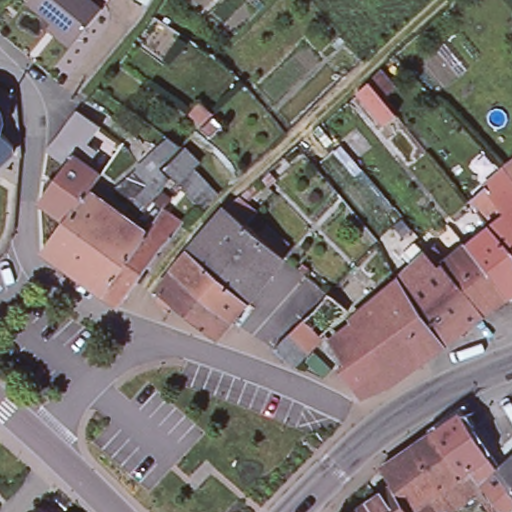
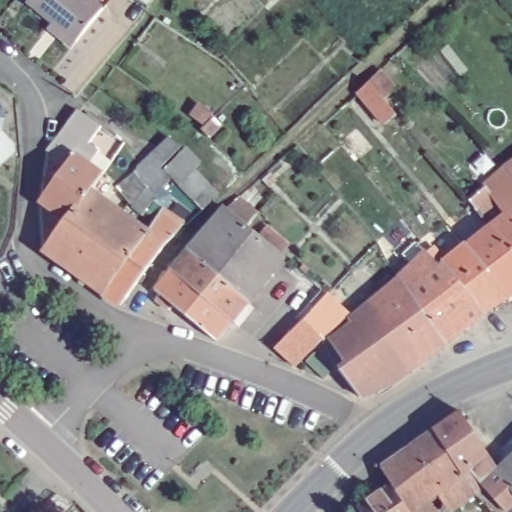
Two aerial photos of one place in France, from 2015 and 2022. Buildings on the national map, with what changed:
unchanged [(27,0),(28,0),(93,0),(102,7),(75,40),(70,46),(49,28),(54,21),(27,0)]
unchanged [(379,69),(394,87),(382,98),(395,114),(384,122),(358,90),(369,80),(379,69)]
unchanged [(215,114),(214,116),(222,127),(210,136),(187,115),(197,102),(215,114)]
unchanged [(3,119),(2,125),(1,130),(0,132),(0,108),(2,111),(3,119)]
unchanged [(100,125),(89,142),(99,150),(87,165),(72,154),(66,164),(47,150),(80,110),(100,125)]
unchanged [(14,150),(0,161),(0,135),(13,144),(14,150)]
unchanged [(42,247),(64,218),(66,220),(88,190),(89,190),(145,230),(154,218),(143,210),(139,215),(127,205),(130,203),(114,184),(140,165),(147,157),(168,135),(182,145),(160,166),(171,177),(152,200),(182,221),(162,242),(118,304),(100,290),(42,247)]
unchanged [(72,154),(87,165),(101,175),(89,190),(88,190),(66,220),(64,218),(40,200),(66,164),(72,154)]
unchanged [(480,215),(470,200),(489,182),(485,179),(490,175),(494,178),(501,171),(502,170),(512,161),(512,258),(488,228),(494,224),(502,216),(493,205),(480,215)]
unchanged [(192,169),(217,194),(201,207),(177,183),(192,169)]
unchanged [(236,197),(255,214),(247,225),(284,257),(244,305),(189,250),(226,207),(236,197)]
unchanged [(488,228),(512,258),(512,296),(507,299),(466,245),(488,228)]
unchanged [(401,253),(415,242),(425,253),(432,246),(445,262),(466,245),(507,299),(485,315),(471,323),(445,344),(402,282),(397,277),(412,265),(401,253)]
unchanged [(189,250),(244,305),(227,323),(172,271),(189,250)]
unchanged [(155,291),(172,271),(227,323),(215,340),(212,342),(159,294),(155,291)]
unchanged [(397,277),(402,282),(445,344),(410,369),(365,306),(397,277)]
unchanged [(327,294),(329,292),(347,308),(325,331),(292,365),(275,348),(306,315),(327,294)]
unchanged [(352,326),(349,320),(355,315),(365,306),(410,369),(392,383),(359,396),(355,391),(338,369),(345,363),(330,342),(352,326)]
unchanged [(500,503),(491,510),(470,486),(445,503),(406,443),(440,421),(458,409),(495,465),(512,449),(512,493),(507,497),(510,501),(506,505),(503,502),(500,503)]
unchanged [(375,464),(406,443),(445,503),(452,512),(410,512),(386,480),(377,467),(375,464)]
unchanged [(410,512),(360,512),(354,503),(386,480),(410,512)]
unchanged [(69,512),(55,512),(62,505),(69,512)]

